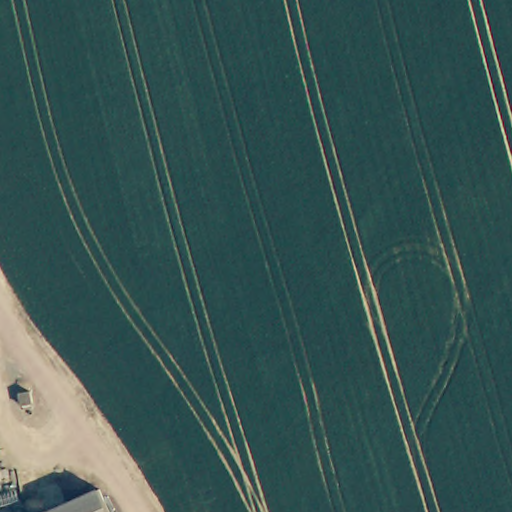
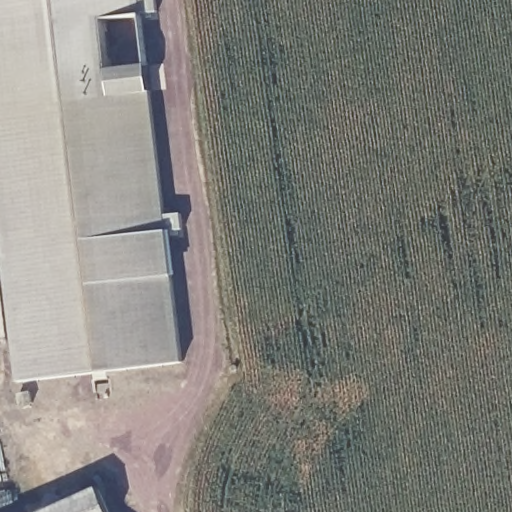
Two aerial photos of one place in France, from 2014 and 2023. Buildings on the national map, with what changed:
new [(99,20),(105,70),(146,65),(173,277),(181,363),(15,381),(0,252),(0,0),(138,0),(139,14),(99,20)]
unchanged [(108,512),(60,512),(100,493),(108,512)]

